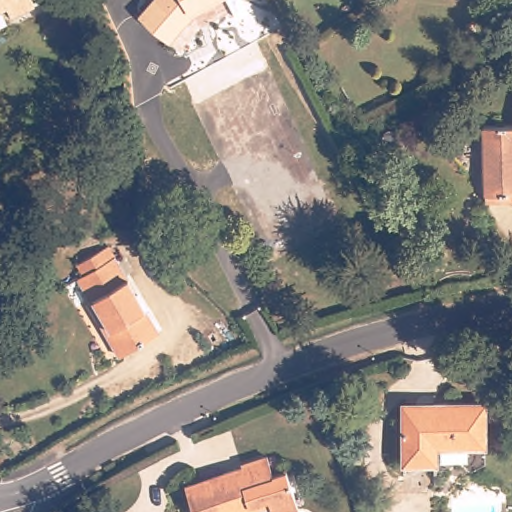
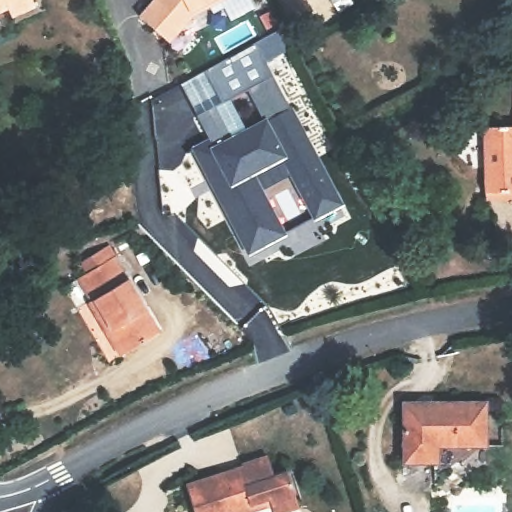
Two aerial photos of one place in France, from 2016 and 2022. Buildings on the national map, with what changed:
unchanged [(34,7),(11,18),(6,9),(0,11),(0,0),(31,0),(34,7)]
unchanged [(193,12),(163,42),(134,16),(142,6),(148,0),(217,0),(193,12)]
new [(313,221),(281,161),(254,174),(286,235),(246,256),(189,147),(206,138),(195,115),(273,76),(289,109),(294,107),(345,206),(313,221)]
unchanged [(490,196),(490,192),(487,130),(512,129),(512,195),(490,196)]
unchanged [(112,252),(158,331),(124,352),(102,317),(95,322),(85,303),(89,300),(74,276),(112,252)]
unchanged [(484,402),(484,443),(434,443),(433,462),(401,462),(402,408),(433,408),(433,403),(484,402)]
unchanged [(246,466),(246,464),(271,457),(276,474),(289,471),(300,507),(285,512),(275,512),(272,505),(250,512),(199,512),(189,484),(211,477),(246,466)]

